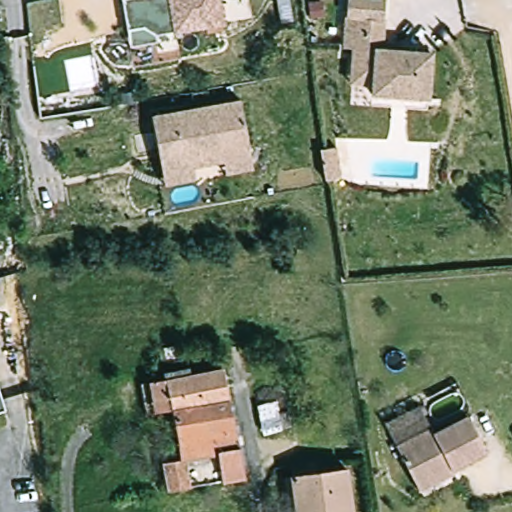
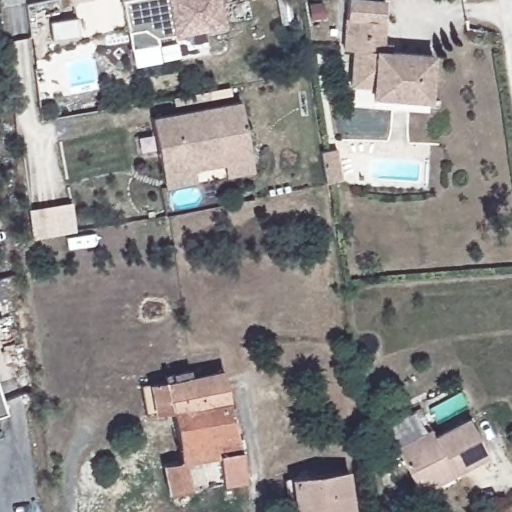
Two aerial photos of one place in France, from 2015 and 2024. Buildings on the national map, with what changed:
unchanged [(129,49),(126,31),(120,0),(218,0),(222,25),(153,36),(154,44),(129,49)]
unchanged [(357,74),(359,49),(349,49),(352,0),(373,0),(388,1),(386,21),(382,21),(380,51),(435,55),(431,101),(377,97),(377,87),(356,85),(357,74)]
unchanged [(165,187),(161,170),(151,117),(239,100),(250,152),(253,170),(227,175),(224,157),(192,164),(195,181),(165,187)]
new [(73,202),(76,232),(31,236),(28,206),(73,202)]
unchanged [(170,493),(164,465),(182,461),(172,412),(146,417),(140,387),(165,382),(163,376),(188,371),(190,377),(222,370),(228,401),(191,408),(201,457),(207,486),(170,493)]
unchanged [(5,411),(0,413),(0,397),(5,411)]
unchanged [(239,449),(244,478),(207,486),(201,457),(191,408),(228,401),(239,449)]
unchanged [(419,486),(402,451),(435,435),(437,440),(471,423),(489,460),(455,477),(456,480),(424,495),(419,486)]
unchanged [(300,512),(297,479),(298,478),(297,469),(312,466),(313,476),(351,471),(356,512),(300,512)]

